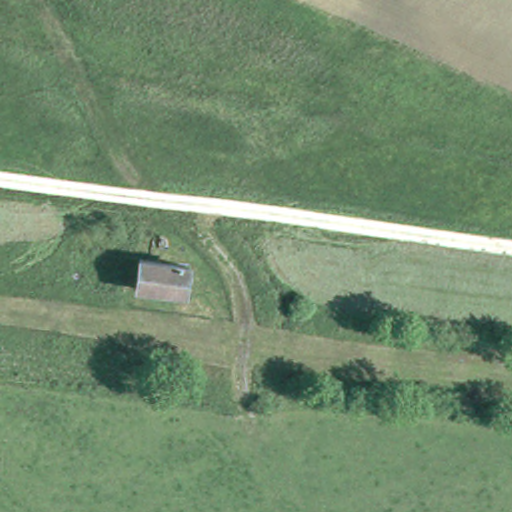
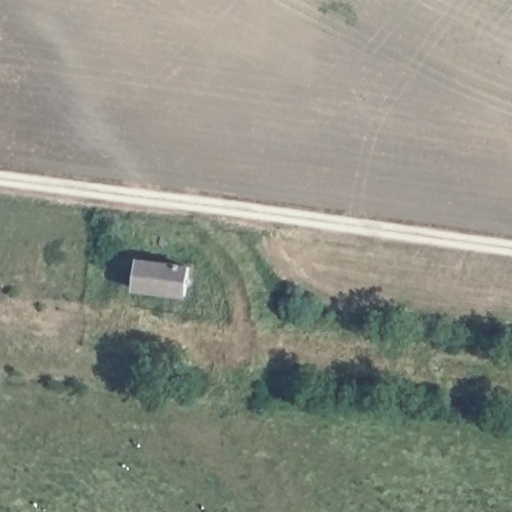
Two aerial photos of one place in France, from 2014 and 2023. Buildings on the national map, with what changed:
unchanged [(190,267),(185,296),(135,289),(140,259),(190,267)]

